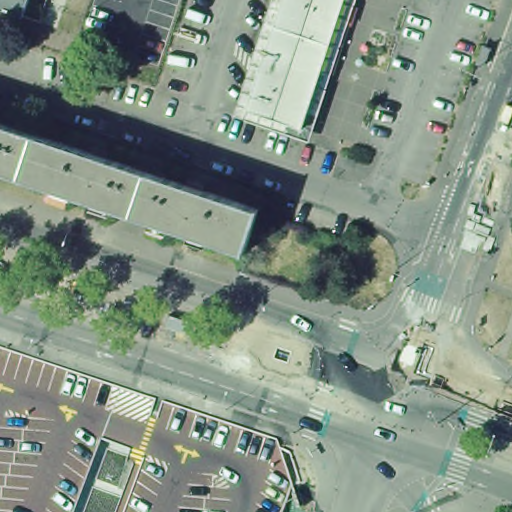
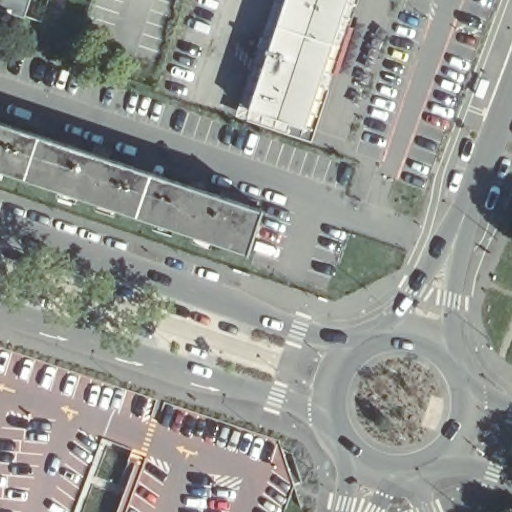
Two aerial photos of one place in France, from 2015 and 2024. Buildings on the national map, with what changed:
unchanged [(0,10),(0,0),(25,0),(20,17),(0,10)]
unchanged [(342,0),(298,131),(243,113),(281,0),(342,0)]
unchanged [(252,214),(253,212),(255,213),(241,259),(238,258),(238,255),(0,176),(0,129),(88,159),(90,151),(105,156),(102,164),(183,190),(185,184),(201,189),(198,196),(252,214)]

